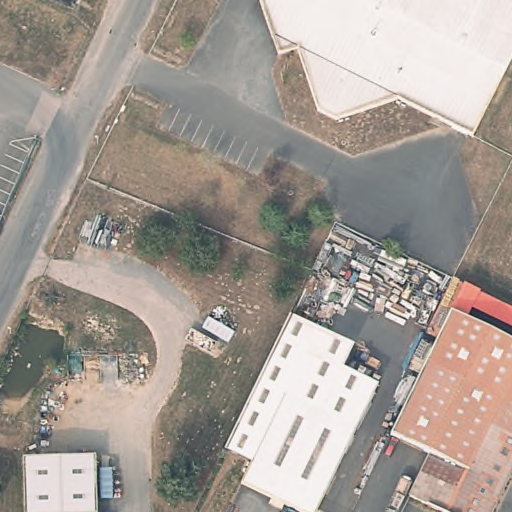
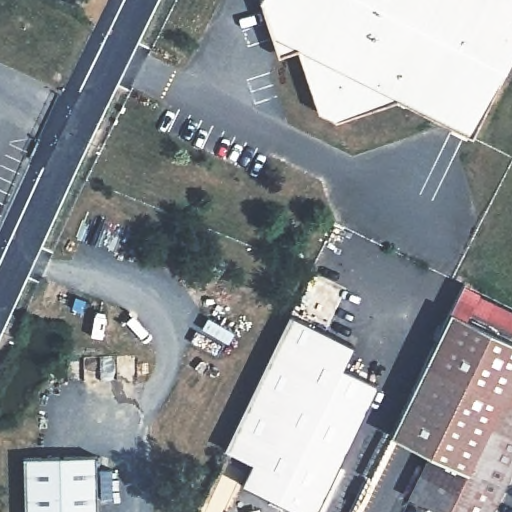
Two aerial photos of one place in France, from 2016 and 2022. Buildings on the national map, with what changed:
unchanged [(295,34),(277,37),(263,0),(409,0),(446,17),(405,103),(400,102),(350,114),(342,117),(324,108),(295,34)]
unchanged [(446,17),(453,0),(512,0),(512,56),(472,136),(405,103),(446,17)]
unchanged [(446,17),(409,0),(453,0),(446,17)]
unchanged [(455,298),(512,326),(512,470),(491,512),(467,512),(416,488),(437,445),(395,424),(431,348),(455,298)]
unchanged [(347,365),(381,381),(318,512),(307,512),(244,482),(254,460),(227,448),(292,311),(357,342),(347,365)]
unchanged [(100,512),(28,512),(27,454),(100,453),(100,512)]

